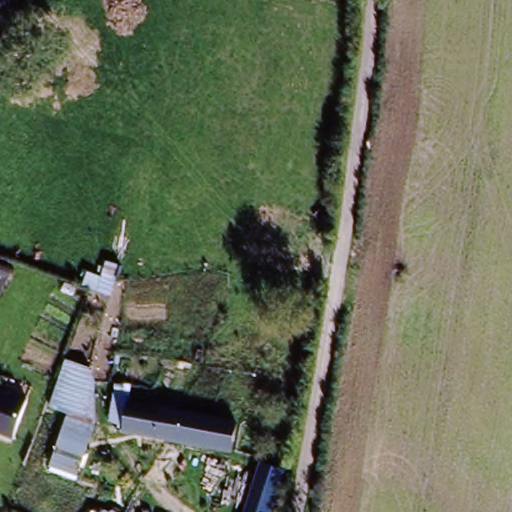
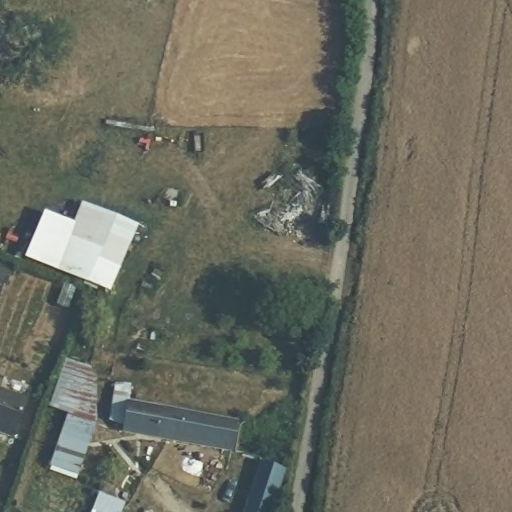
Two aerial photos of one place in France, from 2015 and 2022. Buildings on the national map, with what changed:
new [(73,225),(82,204),(138,227),(108,296),(23,262),(42,212),(73,225)]
unchanged [(95,370),(98,425),(79,480),(47,470),(67,413),(48,405),(65,358),(95,370)]
unchanged [(27,398),(15,437),(0,432),(0,389),(27,398)]
unchanged [(237,420),(232,450),(122,430),(127,400),(237,420)]
unchanged [(285,475),(271,512),(245,512),(264,466),(285,475)]
unchanged [(92,509),(100,512),(91,512),(92,509)]

